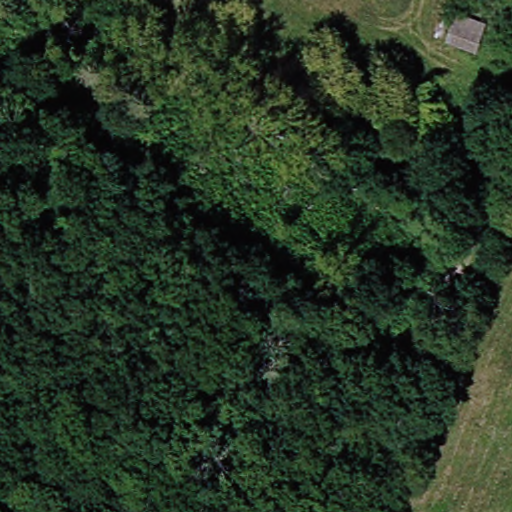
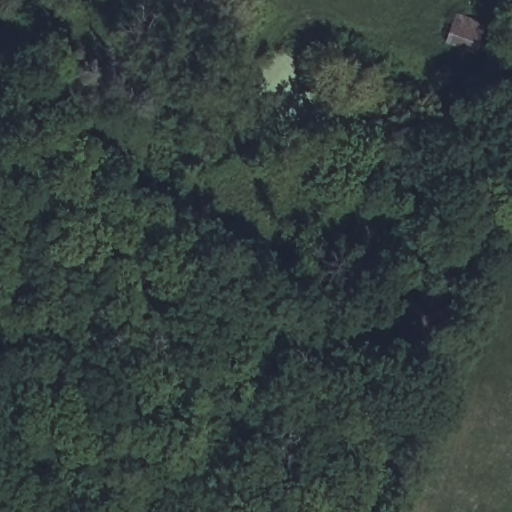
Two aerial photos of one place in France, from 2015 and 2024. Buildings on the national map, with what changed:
unchanged [(487,23),(477,53),(446,45),(457,13),(487,23)]

